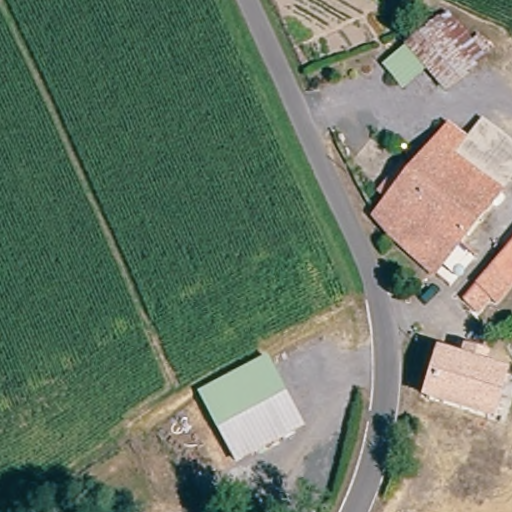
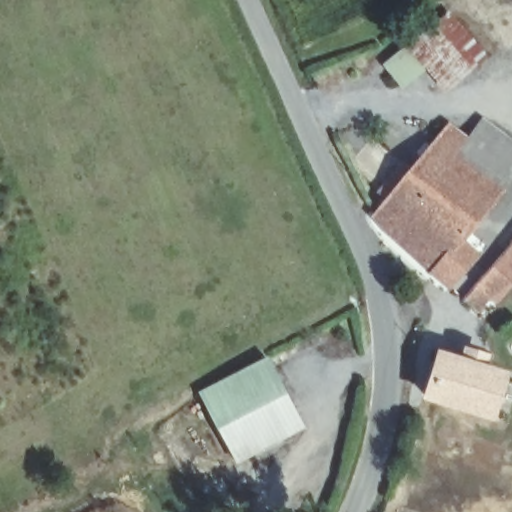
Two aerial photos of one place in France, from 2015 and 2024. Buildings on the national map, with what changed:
unchanged [(480,52),(483,56),(440,92),(420,71),(398,86),(376,63),(443,7),(468,40),(477,31),(488,45),(480,52)]
unchanged [(384,201),(365,187),(391,155),(410,169),(450,114),(508,160),(502,171),(506,175),(438,263),(377,207),(384,201)]
unchanged [(512,240),(512,284),(497,302),(507,309),(501,318),(488,307),(485,312),(465,298),(512,240)]
unchanged [(510,305),(512,301),(512,306),(510,305)]
unchanged [(461,350),(480,356),(477,365),(498,371),(486,412),(423,392),(435,352),(458,359),(461,350)]
unchanged [(200,393),(265,357),(275,377),(300,426),(235,462),(211,415),(200,393)]

